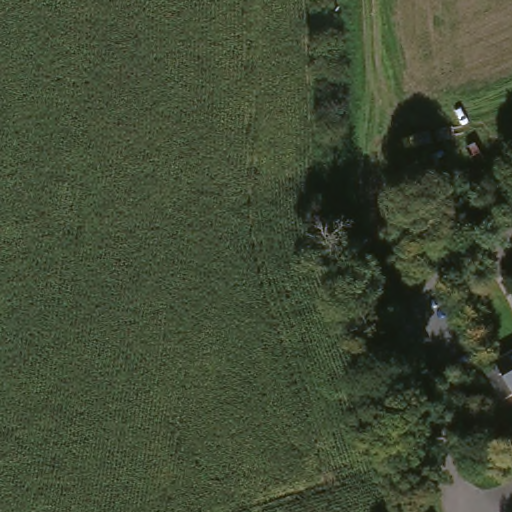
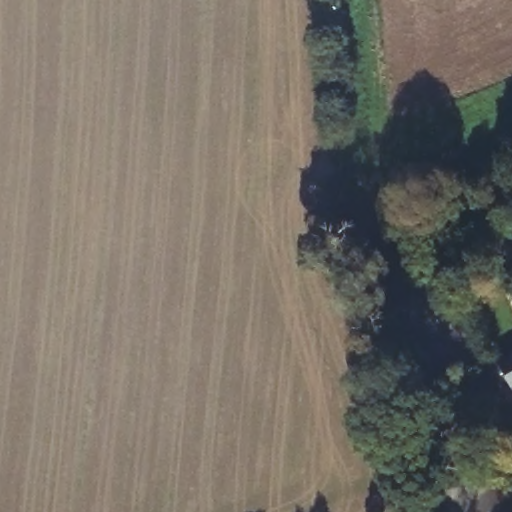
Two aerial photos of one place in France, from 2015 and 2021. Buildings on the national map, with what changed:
unchanged [(505,349),(512,346),(512,391),(509,393),(494,363),(508,356),(505,349)]

